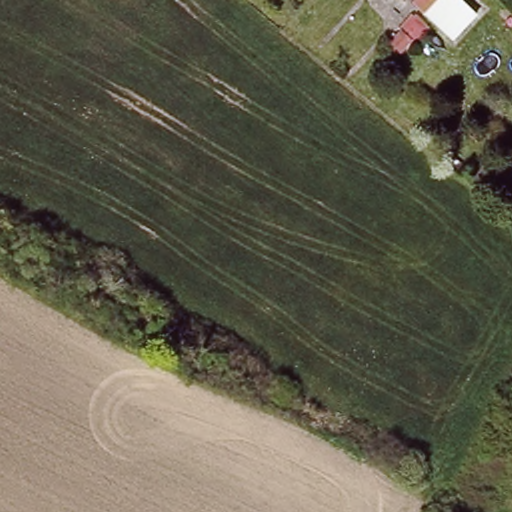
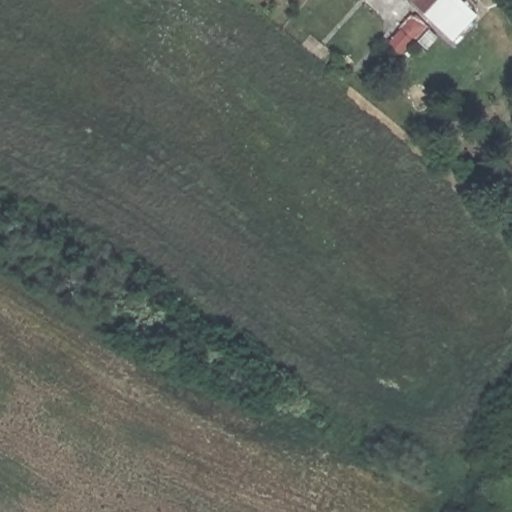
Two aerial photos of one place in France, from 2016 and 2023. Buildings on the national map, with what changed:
unchanged [(430,11),(418,0),(441,0),(430,11)]
unchanged [(477,13),(455,35),(430,11),(441,0),(465,0),(477,13)]
unchanged [(402,31),(390,41),(378,31),(390,20),(402,31)]

